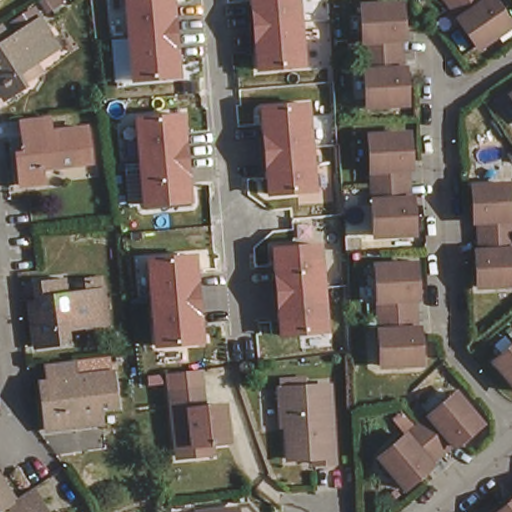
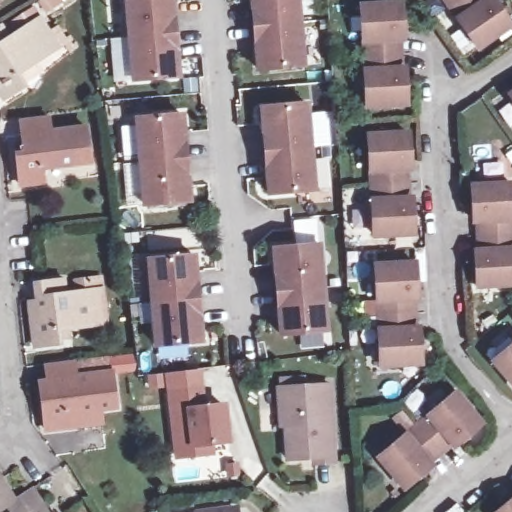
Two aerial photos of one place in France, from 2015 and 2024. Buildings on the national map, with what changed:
unchanged [(133,84),(126,0),(175,0),(183,79),(133,84)]
unchanged [(258,74),(252,0),(303,0),(309,70),(258,74)]
unchanged [(512,16),(512,29),(483,49),(450,0),(501,0),(505,6),(512,16)]
unchanged [(411,78),(412,102),(371,103),(368,5),(409,3),(409,33),(409,37),(411,70),(411,78)]
unchanged [(26,85),(5,100),(0,92),(0,30),(6,40),(17,32),(12,25),(30,12),(36,19),(55,49),(19,75),(26,85)]
unchanged [(511,97),(512,96),(512,98),(511,97)]
unchanged [(269,197),(261,107),(309,102),(318,193),(269,197)]
unchanged [(144,208),(136,117),(185,114),(193,204),(144,208)]
unchanged [(45,181),(21,182),(19,155),(25,155),(23,121),(50,120),(51,132),(88,130),(90,162),(44,165),(45,181)]
unchanged [(416,210),(417,233),(376,234),(373,137),(413,135),(414,160),(414,167),(416,203),(416,210)]
unchanged [(474,186),(512,185),(512,282),(479,283),(478,262),(477,247),(476,219),(475,210),(474,186)]
unchanged [(329,334),(280,338),(272,247),(323,242),(329,334)]
unchanged [(206,343),(154,347),(147,258),(198,253),(206,343)]
unchanged [(423,340),(424,362),(383,364),(379,265),(419,263),(420,292),(421,299),(422,330),(423,340)]
unchanged [(58,331),(59,342),(35,344),(32,315),(38,314),(35,285),(63,281),(65,295),(80,292),(78,280),(100,277),(102,290),(106,326),(58,331)]
unchanged [(496,364),(512,351),(512,383),(496,364)]
unchanged [(73,436),(50,437),(48,406),(53,406),(49,371),(78,369),(113,365),(114,382),(118,417),(107,418),(108,432),(73,436)]
unchanged [(224,408),(228,443),(194,447),(196,457),(176,458),(171,395),(168,375),(197,372),(198,372),(201,392),(198,392),(200,410),(224,408)]
unchanged [(303,381),(303,390),(321,388),(323,411),(331,411),(335,466),(314,467),(314,460),(287,462),(284,427),(281,427),(278,392),(279,392),(279,382),(303,381)]
unchanged [(430,470),(408,488),(382,456),(459,394),(484,425),(464,442),(457,448),(433,468),(430,470)]
unchanged [(34,486),(44,500),(40,503),(47,512),(16,512),(9,501),(0,507),(0,474),(14,497),(34,486)]
unchanged [(501,512),(512,503),(512,512),(501,512)]
unchanged [(240,512),(209,512),(239,508),(240,512)]

